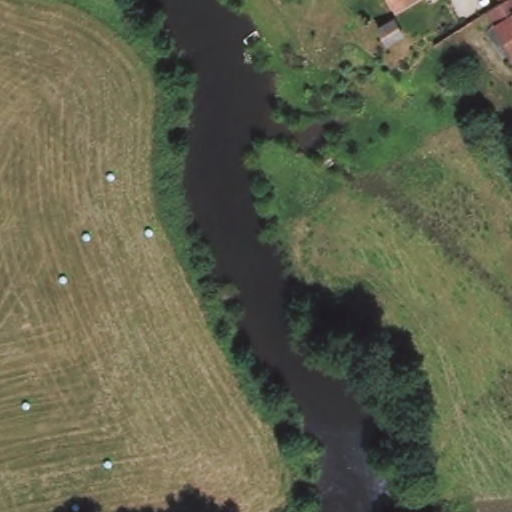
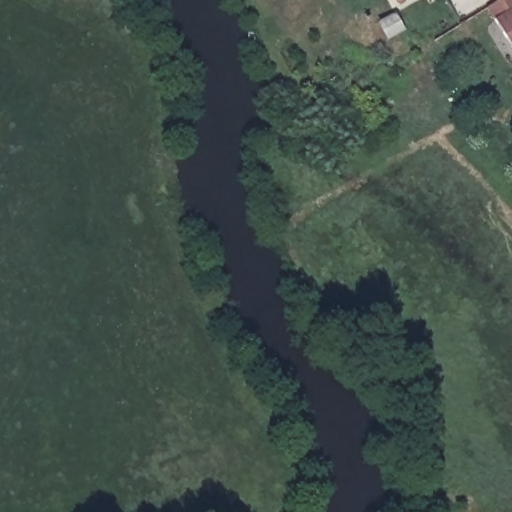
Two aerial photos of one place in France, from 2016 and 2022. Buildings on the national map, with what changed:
unchanged [(392,0),(407,0),(396,6),(392,0)]
unchanged [(499,0),(512,0),(512,52),(485,9),(497,1),(499,0)]
unchanged [(496,0),(499,0),(497,1),(496,0)]

